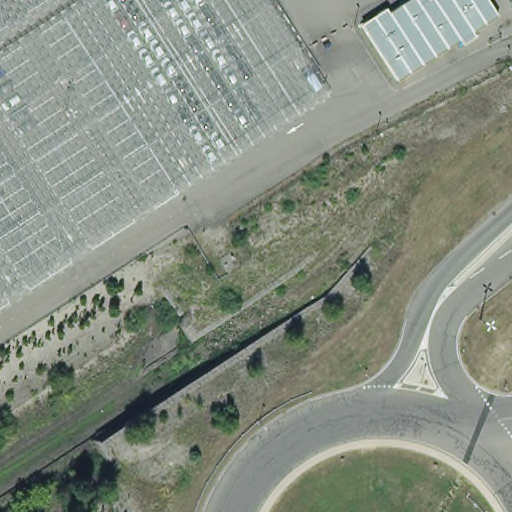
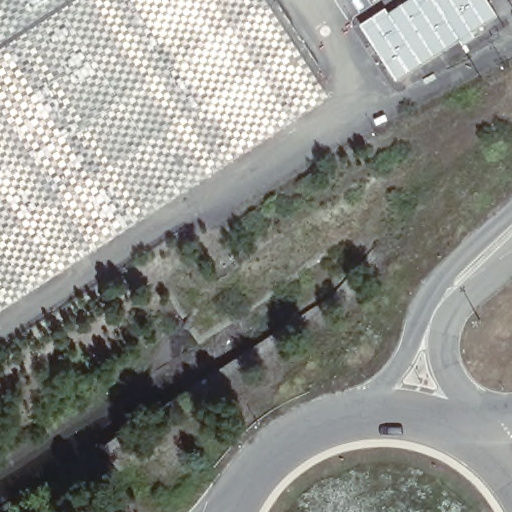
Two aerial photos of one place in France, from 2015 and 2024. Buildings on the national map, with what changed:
unchanged [(392,14),(412,0),(489,0),(501,19),(399,81),(365,23),(388,8),(392,14)]

